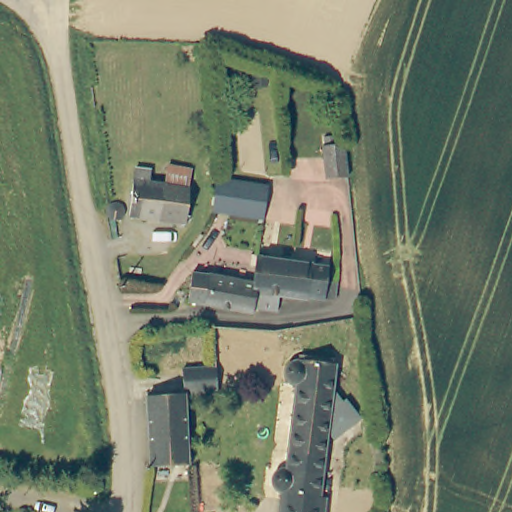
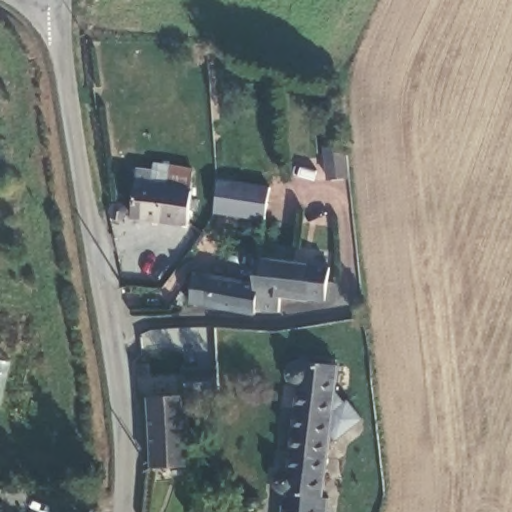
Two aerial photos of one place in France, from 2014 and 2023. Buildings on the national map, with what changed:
unchanged [(347,176),(328,179),(323,145),(341,143),(347,176)]
unchanged [(171,163),(197,165),(197,186),(202,186),(200,222),(134,218),(136,182),(136,170),(151,171),(151,183),(170,184),(171,163)]
unchanged [(215,208),(216,193),(218,177),(272,185),(267,221),(215,214),(214,214),(215,208)]
unchanged [(125,207),(129,210),(130,216),(130,222),(126,226),(122,228),(117,229),(113,227),(110,214),(113,209),(119,205),(125,207)]
unchanged [(296,266),(306,267),(318,268),(319,277),(335,282),(333,302),(320,302),(319,305),(275,301),(275,310),(254,309),(254,313),(215,310),(189,308),(190,281),(201,282),(233,285),(257,286),(259,262),(296,266)]
unchanged [(329,371),(327,388),(323,497),(322,512),(276,512),(277,491),(270,486),(268,477),(272,469),(282,466),(290,384),(282,380),(278,371),(282,362),(285,361),(290,358),(330,362),(329,371)]
unchanged [(221,393),(190,395),(189,386),(187,370),(220,367),(221,383),(221,393)]
unchanged [(150,398),(190,395),(195,465),(155,467),(150,398)]

